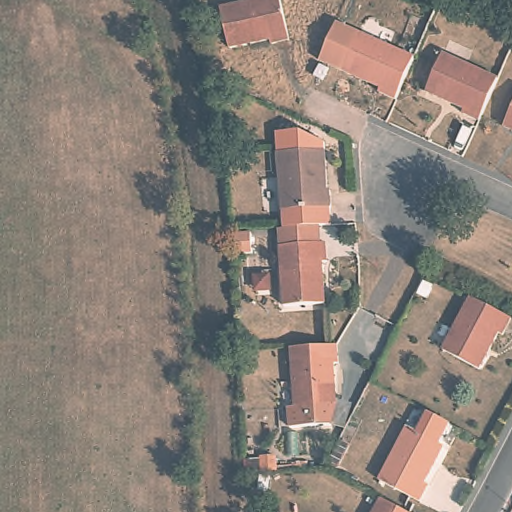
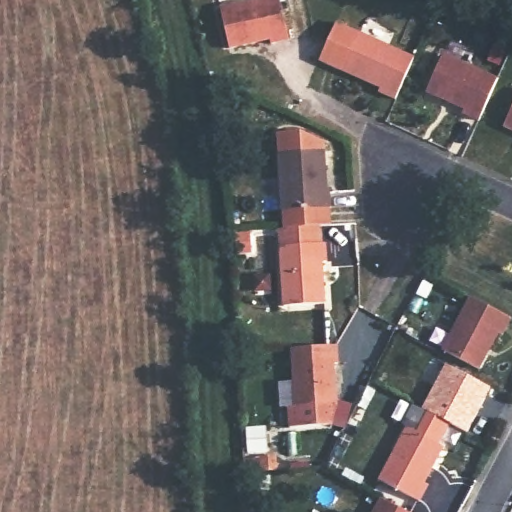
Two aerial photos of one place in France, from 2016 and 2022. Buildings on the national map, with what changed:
unchanged [(287,39),(270,43),(268,38),(227,47),(217,9),(257,0),(278,0),(287,39)]
unchanged [(403,109),(385,100),(387,97),(327,69),(344,31),(422,67),(403,109)]
unchanged [(460,108),(424,91),(440,54),(495,77),(476,121),(457,114),(460,108)]
unchanged [(502,125),(512,104),(512,130),(502,125)]
unchanged [(320,151),(323,190),(327,190),(328,207),(280,210),(276,155),(320,151)]
unchanged [(326,276),(322,277),(325,318),(284,322),(279,261),(277,240),(318,237),(320,258),(325,258),(326,276)]
unchanged [(497,330),(476,368),(442,350),(471,295),(511,316),(502,332),(497,330)]
unchanged [(339,355),(334,355),(338,398),(331,399),(333,418),(292,422),(290,401),(298,400),(294,340),(338,337),(339,355)]
new [(426,412),(419,408),(443,364),(489,387),(465,432),(451,424),(441,447),(415,432),(426,412)]
unchanged [(441,447),(421,485),(425,486),(417,501),(377,480),(405,427),(441,447)]
unchanged [(408,512),(372,512),(380,497),(408,512)]

